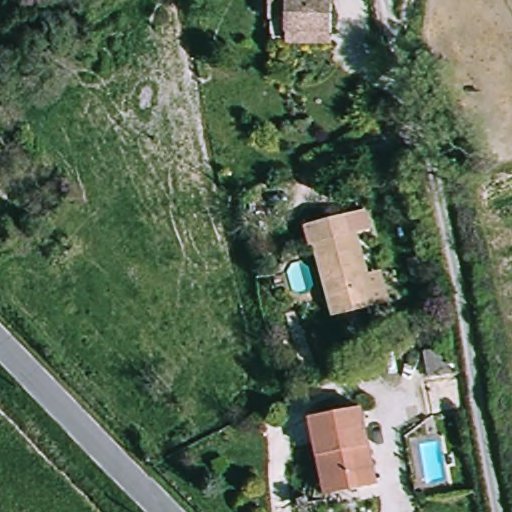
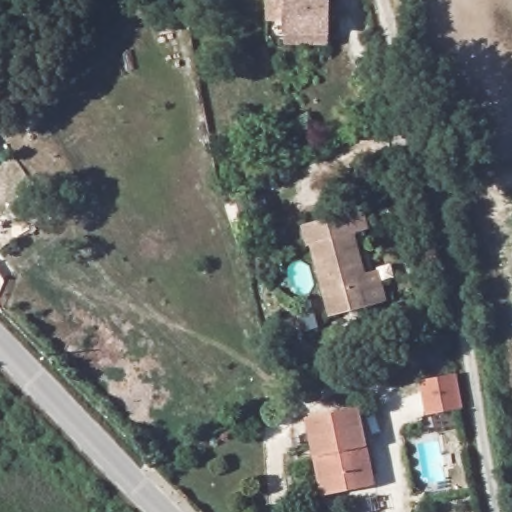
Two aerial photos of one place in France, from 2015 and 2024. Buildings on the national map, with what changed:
unchanged [(321,0),(320,13),(331,14),(330,45),(285,42),(285,30),(270,29),(272,0),(321,0)]
unchanged [(332,317),(322,245),(310,247),(306,220),(352,213),(357,242),(364,240),(372,279),(363,279),(369,310),(332,317)]
new [(460,374),(466,408),(432,414),(425,380),(460,374)]
unchanged [(349,472),(323,478),(311,418),(362,407),(377,484),(352,489),(349,472)]

